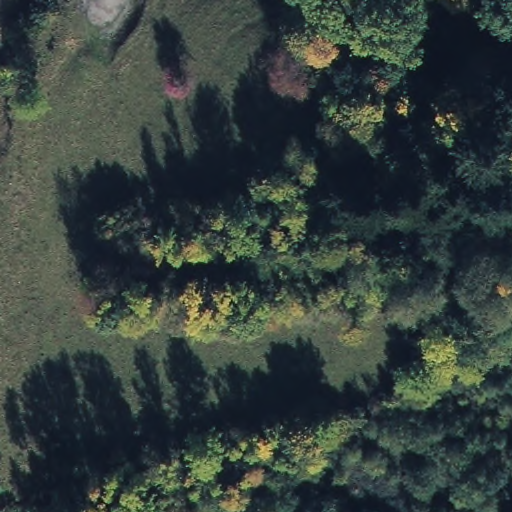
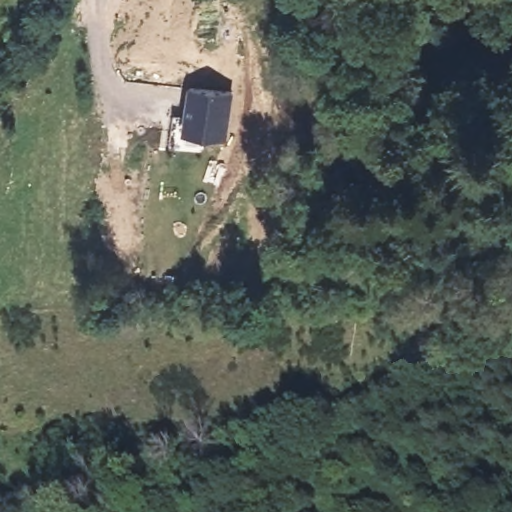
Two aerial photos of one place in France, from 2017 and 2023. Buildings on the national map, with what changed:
new [(231,92),(224,140),(180,132),(186,83),(231,92)]

